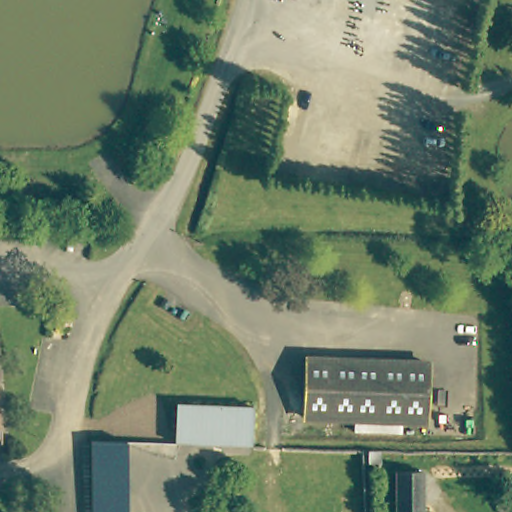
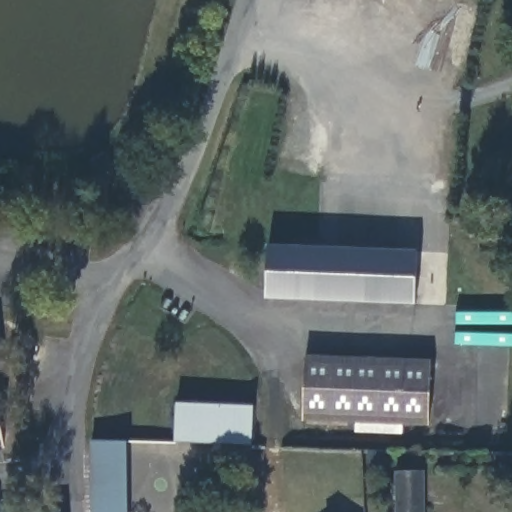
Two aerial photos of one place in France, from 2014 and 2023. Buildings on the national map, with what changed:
new [(266,245),(430,251),(427,303),(265,297),(266,245)]
unchanged [(306,414),(308,358),(427,363),(425,418),(306,414)]
unchanged [(175,401),(252,405),(250,445),(173,441),(175,401)]
unchanged [(0,445),(0,431),(1,445),(0,445)]
unchanged [(90,439),(127,440),(128,512),(91,512),(90,439)]
unchanged [(363,460),(363,449),(374,449),(375,460),(363,460)]
unchanged [(422,512),(399,512),(396,472),(420,470),(422,512)]

